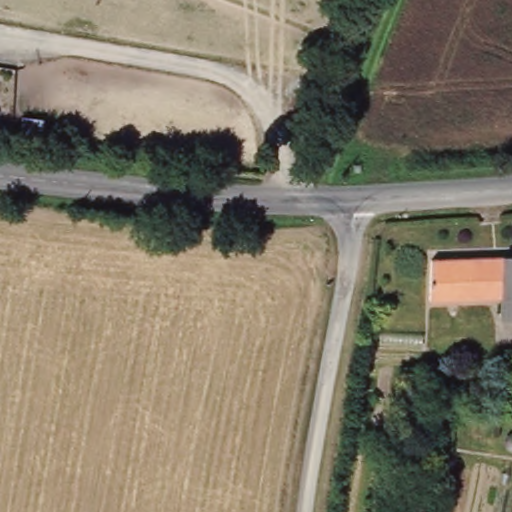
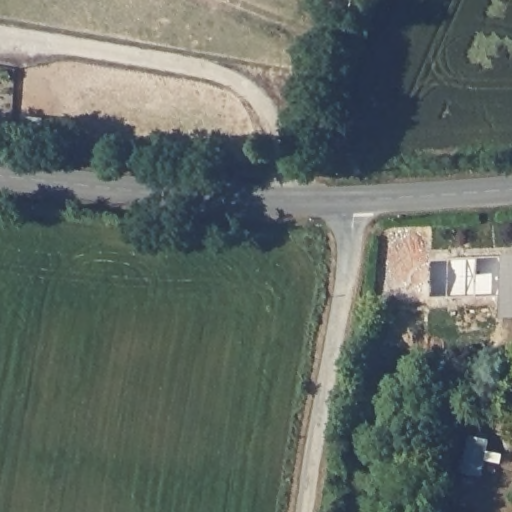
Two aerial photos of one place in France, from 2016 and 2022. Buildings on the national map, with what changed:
unchanged [(501,318),(500,298),(429,300),(431,260),(512,256),(512,318),(501,318)]
unchanged [(512,451),(509,450),(507,448),(505,446),(504,444),(504,441),(505,438),(507,436),(509,434),(512,434),(512,433),(512,451)]

